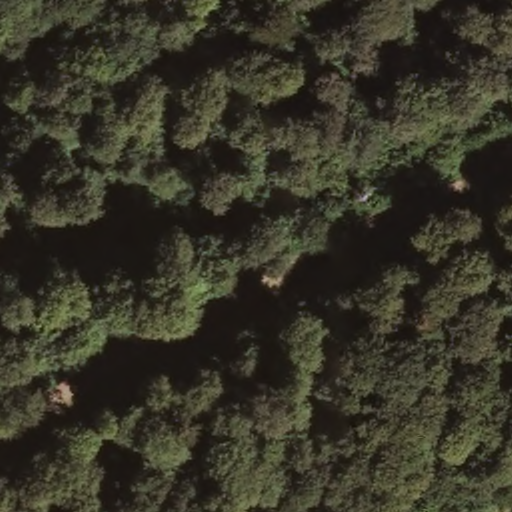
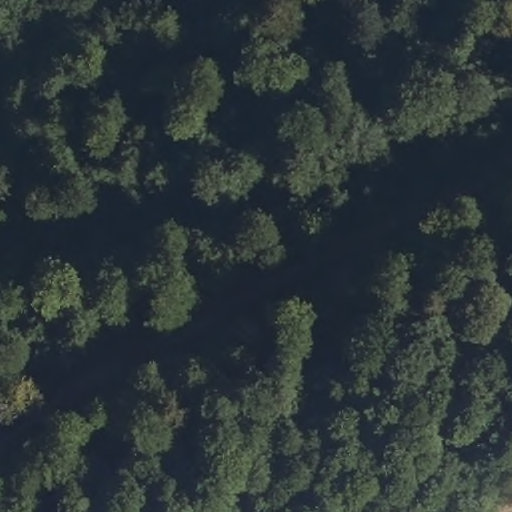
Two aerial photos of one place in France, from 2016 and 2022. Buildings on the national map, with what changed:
[]

